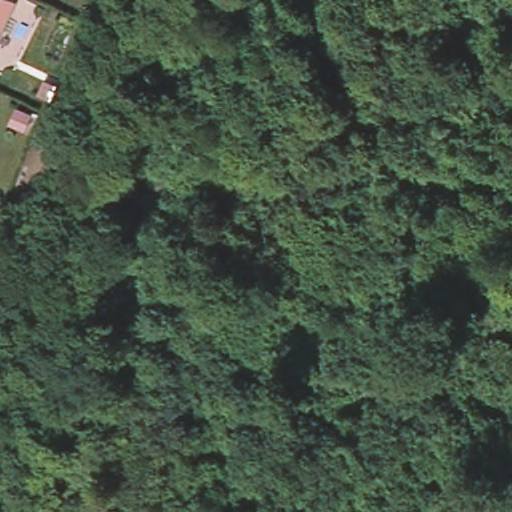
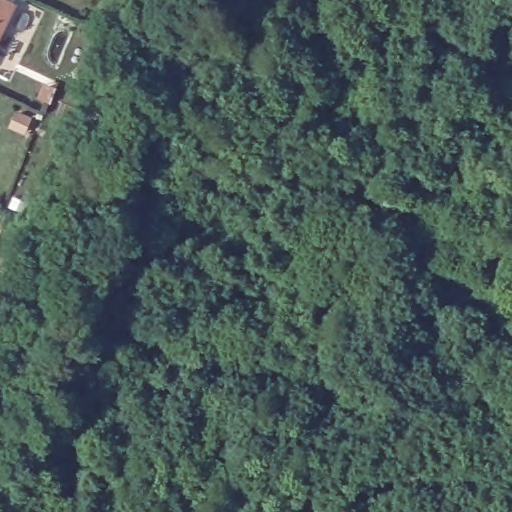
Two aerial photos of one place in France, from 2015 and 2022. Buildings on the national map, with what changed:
unchanged [(10,0),(0,21),(0,0),(10,0)]

